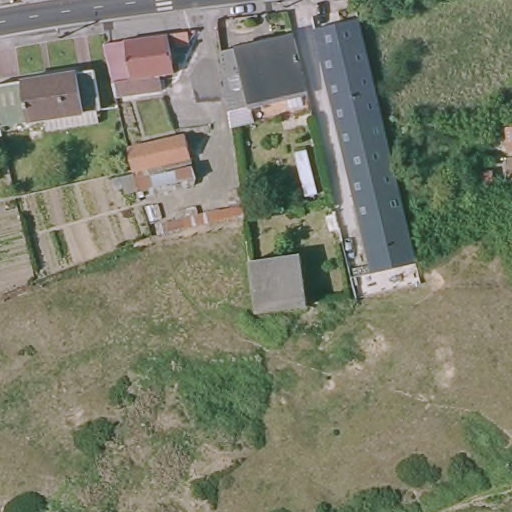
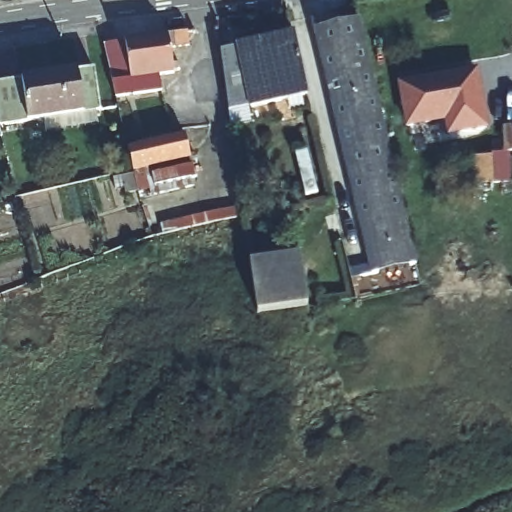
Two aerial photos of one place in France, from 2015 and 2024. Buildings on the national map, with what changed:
unchanged [(187,38),(177,40),(178,48),(171,50),(174,69),(180,69),(181,77),(175,77),(175,82),(162,84),(162,96),(117,103),(102,35),(175,22),(185,21),(187,38)]
unchanged [(357,30),(385,141),(397,194),(392,195),(353,202),(341,152),(315,41),(357,30)]
unchanged [(215,50),(258,41),(260,49),(292,43),(302,97),(240,109),(239,102),(223,104),(215,50)]
unchanged [(95,101),(91,103),(93,116),(42,127),(40,112),(0,120),(0,77),(87,60),(95,101)]
new [(448,137),(445,122),(405,129),(397,82),(478,68),(489,130),(448,137)]
unchanged [(512,117),(512,141),(500,141),(500,117),(512,117)]
unchanged [(188,125),(195,167),(187,170),(190,182),(175,184),(172,173),(125,184),(122,168),(133,165),(132,160),(127,139),(188,125)]
unchanged [(500,146),(512,146),(512,154),(512,170),(501,171),(500,146)]
unchanged [(493,170),(492,180),(474,181),(474,170),(493,170)]
unchanged [(353,202),(392,195),(393,203),(401,238),(403,253),(366,261),(359,229),(353,202)]
unchanged [(297,253),(303,303),(255,309),(250,310),(242,262),(297,253)]

